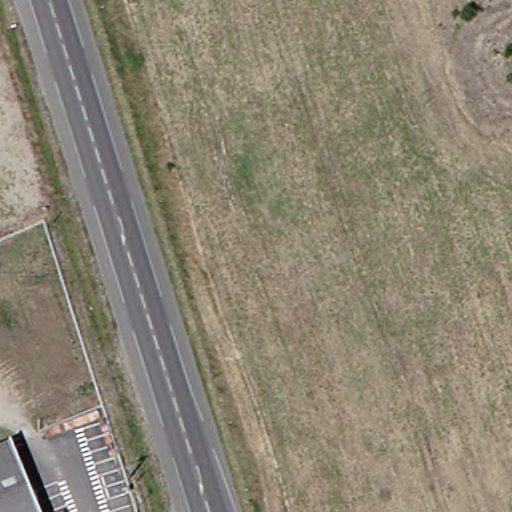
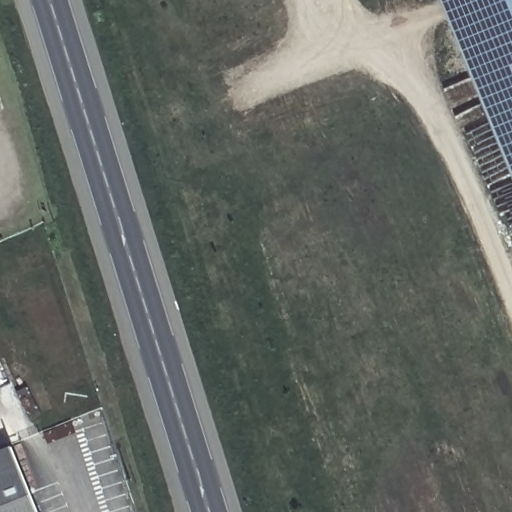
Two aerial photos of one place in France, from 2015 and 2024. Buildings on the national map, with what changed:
new [(512,0),(512,184),(437,0),(512,0)]
unchanged [(0,434),(16,428),(47,512),(0,512),(0,434)]

